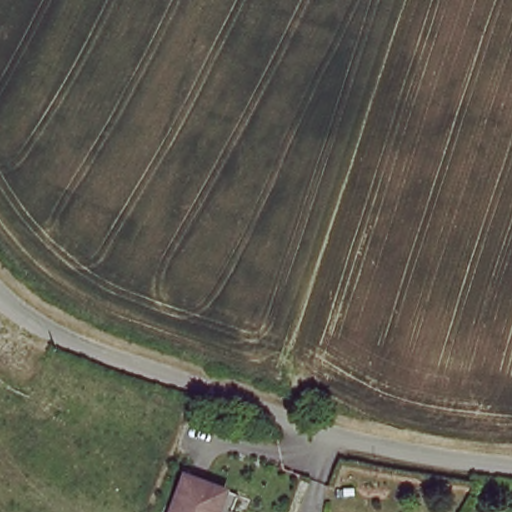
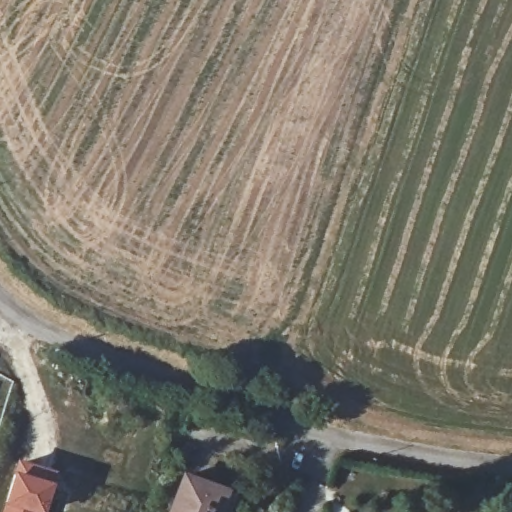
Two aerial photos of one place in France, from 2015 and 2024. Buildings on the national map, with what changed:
new [(44,512),(1,512),(4,504),(14,471),(17,460),(57,472),(52,484),(44,512)]
unchanged [(217,512),(171,512),(185,478),(225,492),(217,512)]

